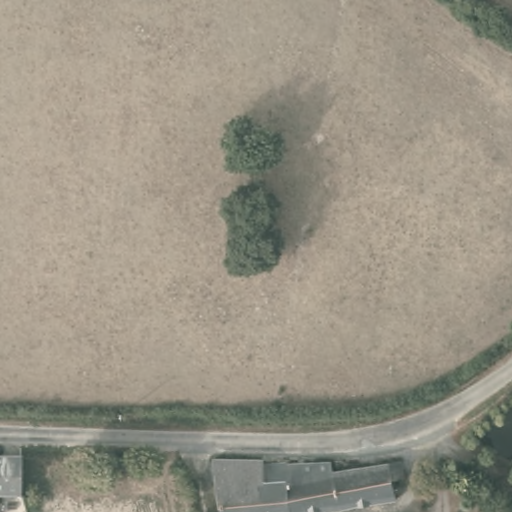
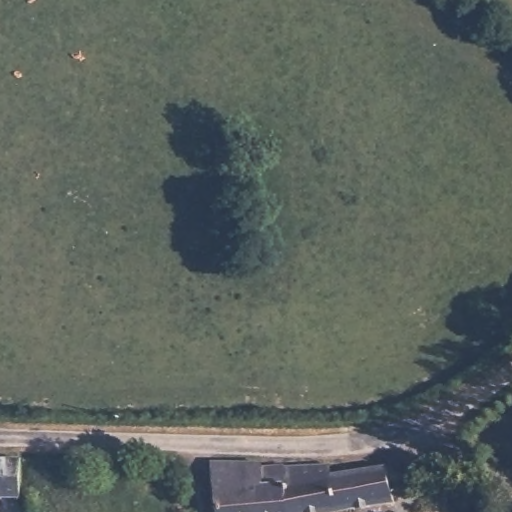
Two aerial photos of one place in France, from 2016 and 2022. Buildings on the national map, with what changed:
unchanged [(333,470),(401,457),(406,476),(391,480),(397,497),(305,512),(220,512),(212,456),(253,457),(331,457),(333,470)]
unchanged [(0,496),(0,458),(22,458),(23,497),(0,496)]

